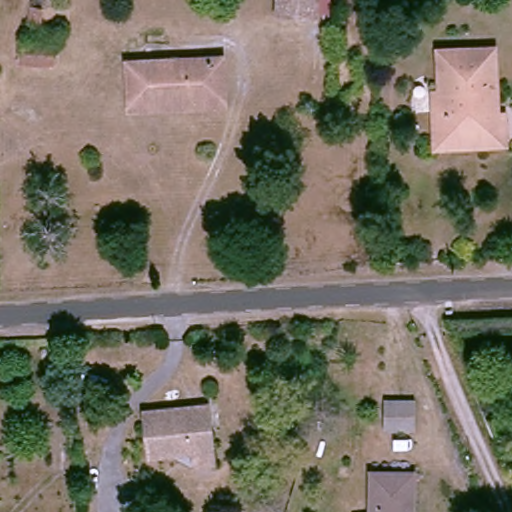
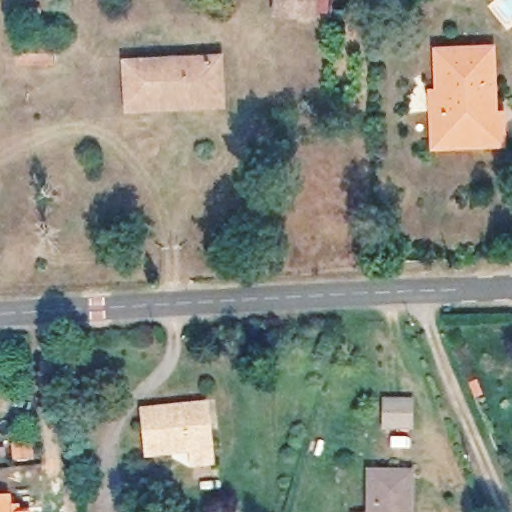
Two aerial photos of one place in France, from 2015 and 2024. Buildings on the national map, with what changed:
unchanged [(310,0),(311,19),(282,20),(282,0),(310,0)]
unchanged [(41,27),(39,57),(6,56),(7,28),(41,27)]
unchanged [(436,108),(449,108),(450,49),(497,50),(497,124),(512,125),(512,143),(436,145),(436,108)]
unchanged [(226,57),(227,103),(127,108),(127,59),(226,57)]
unchanged [(421,397),(421,427),(386,425),(389,395),(421,397)]
unchanged [(214,450),(214,471),(191,473),(192,455),(144,462),(140,408),(209,401),(214,450)]
unchanged [(367,471),(415,476),(415,512),(365,512),(367,471)]
new [(12,511),(30,510),(30,512),(0,512),(0,495),(11,494),(12,511)]

